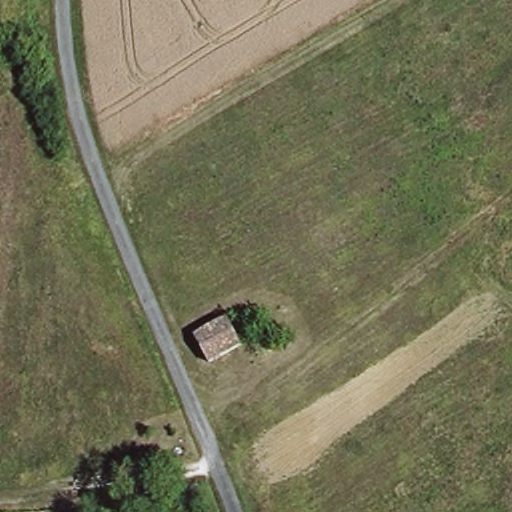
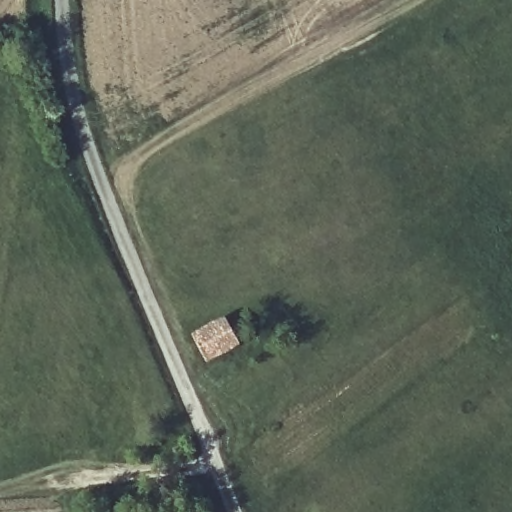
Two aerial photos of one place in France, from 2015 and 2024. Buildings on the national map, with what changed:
unchanged [(211,359),(195,333),(227,314),(243,338),(211,359)]

